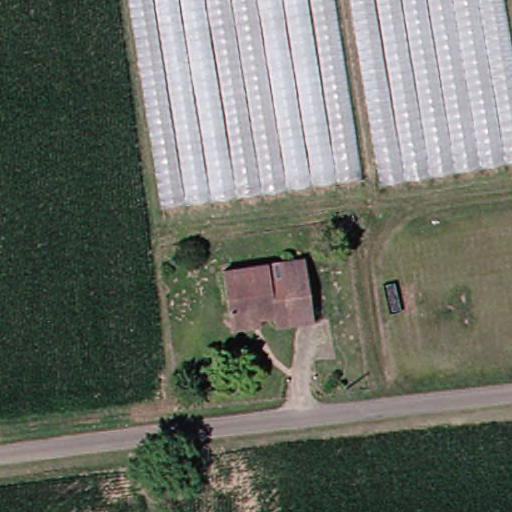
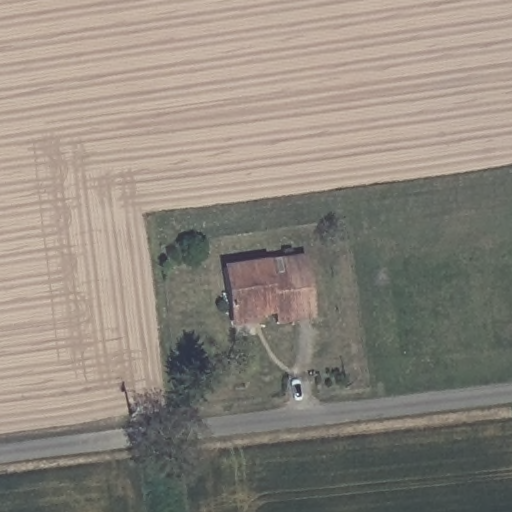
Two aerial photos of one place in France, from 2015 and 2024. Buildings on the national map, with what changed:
demolished [(0,88),(0,0),(107,0),(115,74),(0,88)]
demolished [(164,205),(132,0),(337,0),(364,174),(164,205)]
demolished [(386,184),(354,0),(505,0),(512,42),(512,160),(386,184)]
unchanged [(232,329),(232,321),(227,271),(268,266),(270,282),(287,280),(285,264),(308,261),(309,278),(314,323),(281,327),(281,316),(259,318),(260,327),(232,329)]

